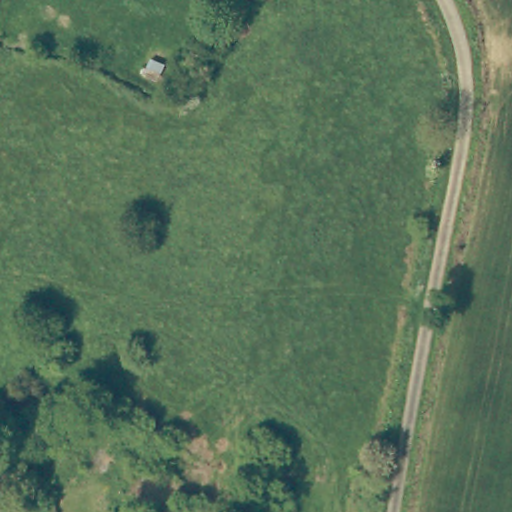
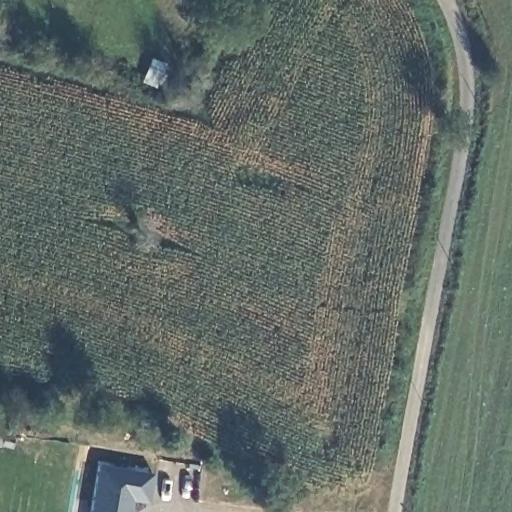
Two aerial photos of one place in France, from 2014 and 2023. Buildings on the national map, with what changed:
unchanged [(4,465),(0,464),(0,440),(9,442),(4,465)]
new [(149,504),(133,501),(131,512),(88,512),(96,464),(154,474),(149,504)]

